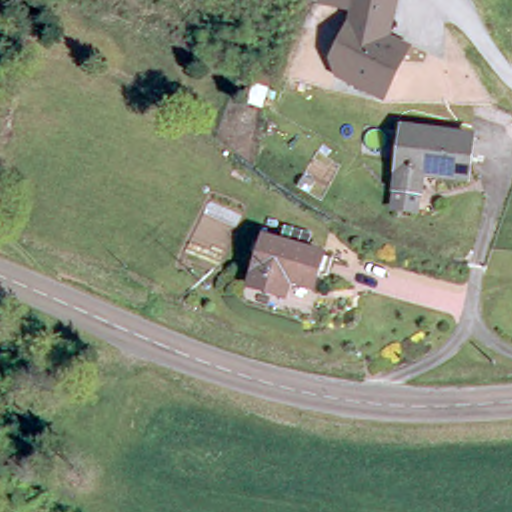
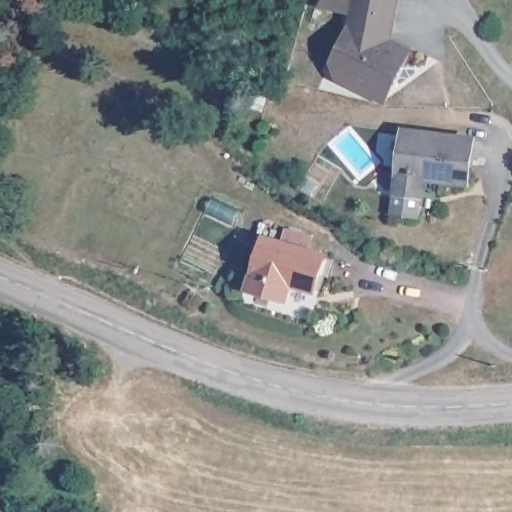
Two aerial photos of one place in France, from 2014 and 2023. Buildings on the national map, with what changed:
unchanged [(330,65),(347,25),(352,0),(400,0),(393,41),(413,50),(386,106),(335,83),(330,65)]
unchanged [(469,190),(425,185),(422,202),(399,199),(409,137),(475,145),(469,190)]
unchanged [(313,275),(310,293),(292,290),(287,302),(255,298),(264,239),(277,244),(280,227),(301,232),(298,248),(332,254),(330,265),(328,277),(313,275)]

